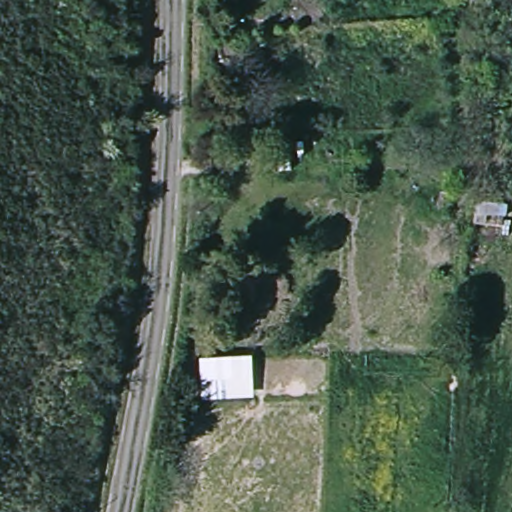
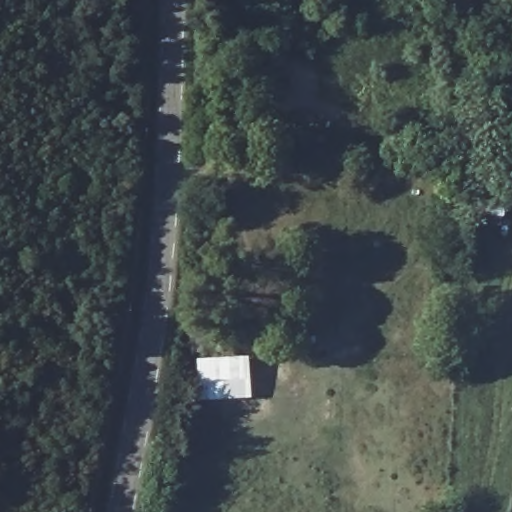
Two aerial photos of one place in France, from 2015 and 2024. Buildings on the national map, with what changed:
unchanged [(250,350),(252,380),(194,385),(197,355),(250,350)]

